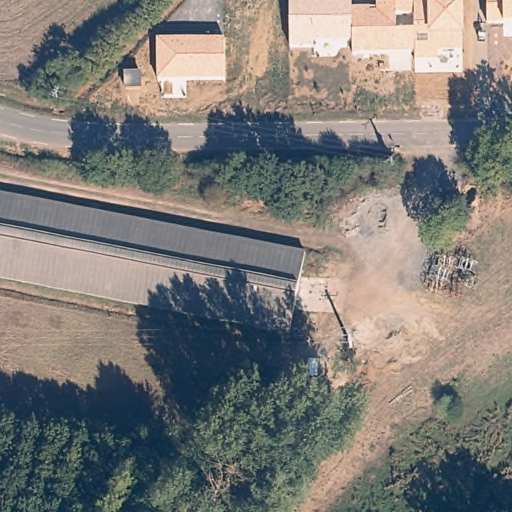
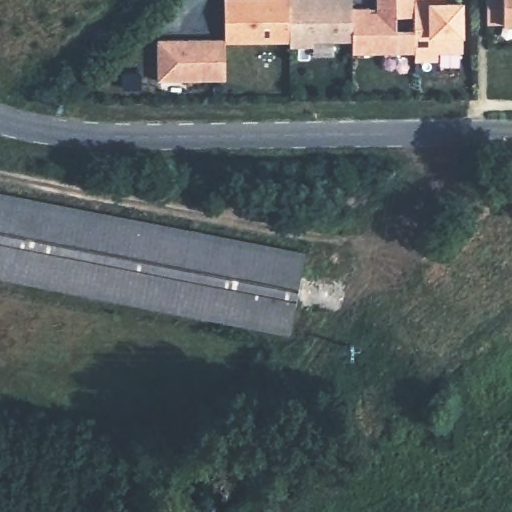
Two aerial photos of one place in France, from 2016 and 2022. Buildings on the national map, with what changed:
new [(291,41),(225,43),(225,38),(224,0),(291,0),(291,41)]
unchanged [(291,0),(353,0),(353,6),(377,5),(377,0),(442,0),(442,1),(465,1),(462,52),(437,52),(437,61),(415,60),(415,53),(352,52),(352,41),(312,41),(312,46),(291,46),(291,0)]
unchanged [(487,0),(512,0),(512,24),(488,24),(487,0)]
unchanged [(226,80),(158,79),(159,39),(225,38),(226,80)]
unchanged [(292,334),(0,277),(0,195),(305,254),(292,334)]

